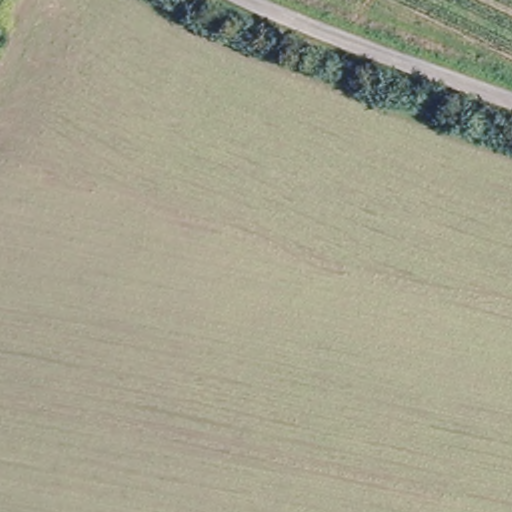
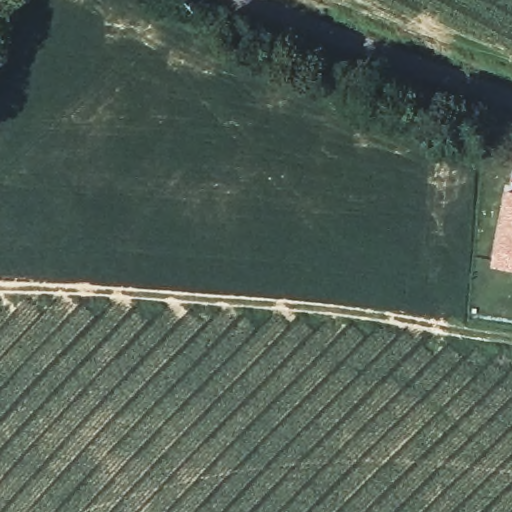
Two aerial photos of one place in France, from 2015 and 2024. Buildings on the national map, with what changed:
new [(506,188),(512,189),(512,268),(491,264),(506,188)]

